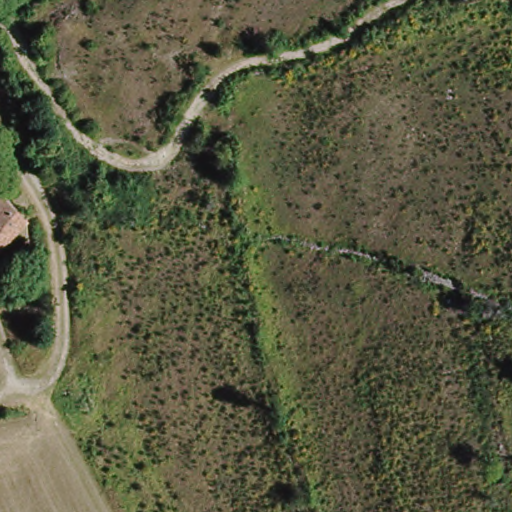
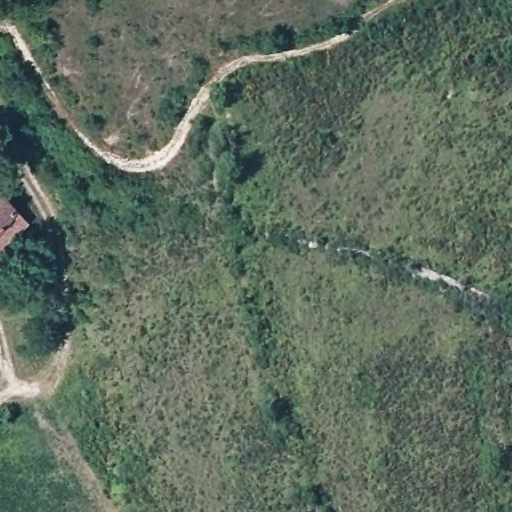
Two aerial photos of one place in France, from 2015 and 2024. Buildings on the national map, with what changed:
unchanged [(0,235),(0,196),(17,216),(0,235)]

